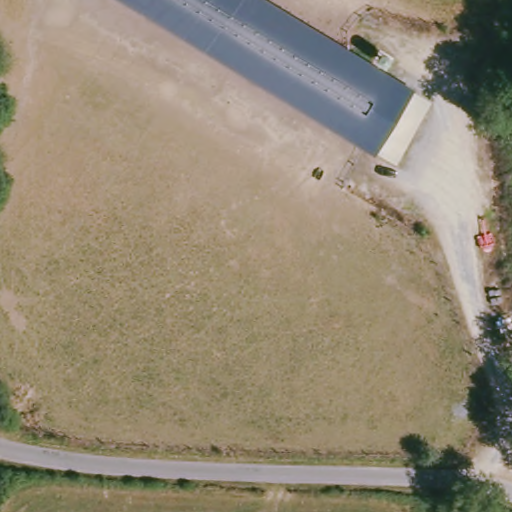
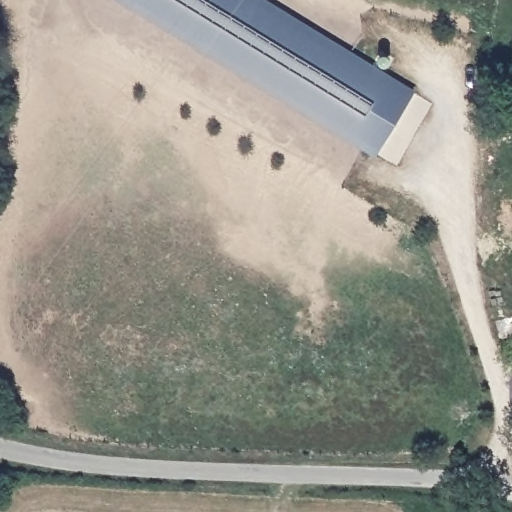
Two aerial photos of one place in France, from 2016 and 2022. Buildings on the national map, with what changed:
unchanged [(116,0),(267,0),(371,61),(375,53),(379,52),(383,53),(387,59),(385,64),(381,68),(413,90),(371,155),(116,0)]

